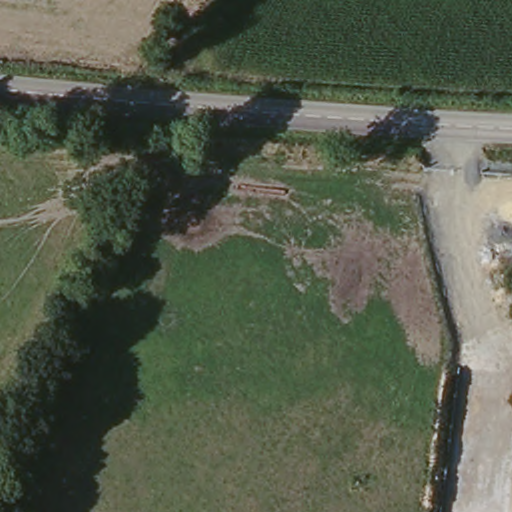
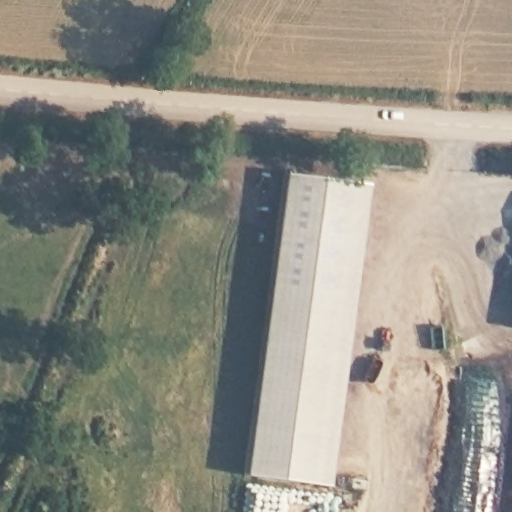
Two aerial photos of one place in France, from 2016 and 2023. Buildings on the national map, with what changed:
new [(368,187),(328,488),(243,479),(282,174),(368,187)]

